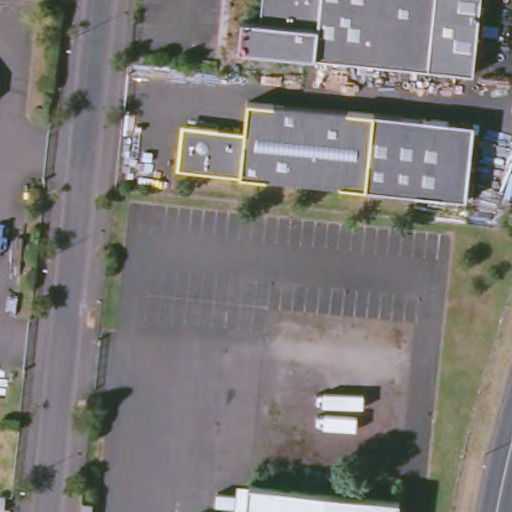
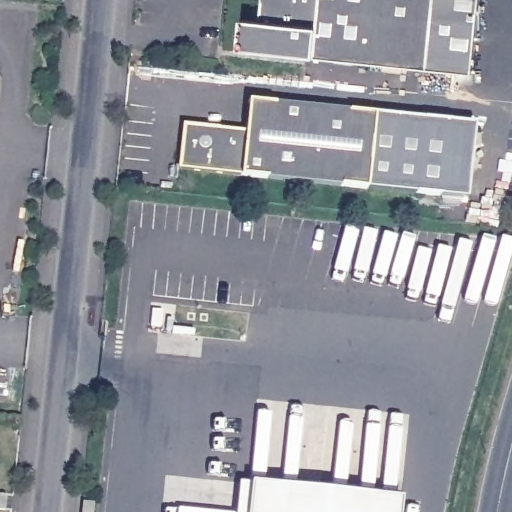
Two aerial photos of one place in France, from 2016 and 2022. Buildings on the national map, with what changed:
unchanged [(241,48),(244,19),(262,21),(264,0),(479,0),(471,73),(241,48)]
unchanged [(360,192),(173,172),(175,151),(183,152),(185,128),(240,134),(243,104),(440,125),(432,200),(360,192)]
unchanged [(440,125),(466,128),(457,203),(432,200),(440,125)]
unchanged [(242,485),(390,500),(388,512),(239,512),(242,485)]
unchanged [(0,511),(0,496),(6,496),(5,511),(0,511)]
unchanged [(83,505),(94,506),(93,512),(82,512),(83,505)]

